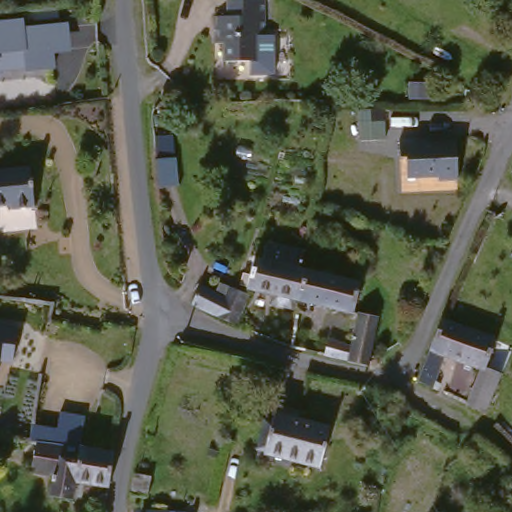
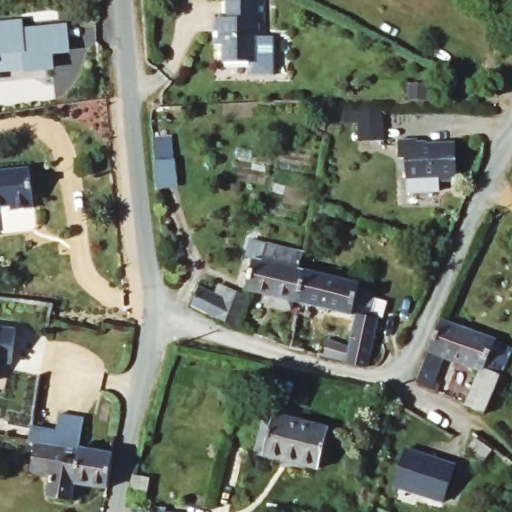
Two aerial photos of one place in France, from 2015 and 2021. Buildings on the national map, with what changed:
unchanged [(231,42),(223,42),(222,24),(223,23),(223,15),(234,15),(234,0),(272,0),(272,34),(263,34),(263,60),(231,60),(231,42)]
unchanged [(21,17),(24,26),(68,21),(69,51),(50,54),(49,68),(0,71),(0,19),(21,17)]
unchanged [(456,182),(399,182),(400,140),(452,142),(456,182)]
unchanged [(173,160),(175,185),(158,186),(156,161),(173,160)]
unchanged [(38,202),(15,204),(15,200),(0,201),(0,166),(34,163),(38,202)]
unchanged [(274,300),(276,290),(251,285),(251,281),(244,280),(247,270),(253,271),(258,253),(266,255),(271,236),(309,245),(305,264),(311,265),(303,297),(298,295),(296,305),(274,300)]
unchanged [(364,278),(357,310),(312,299),(303,297),(311,265),(364,278)]
unchanged [(230,294),(234,282),(253,290),(240,320),(198,300),(201,291),(206,281),(230,294)]
unchanged [(353,357),(353,356),(329,350),(333,334),(356,342),(363,308),(368,310),(369,303),(378,305),(376,311),(382,312),(371,360),(371,362),(353,357)]
unchanged [(501,334),(490,362),(506,369),(489,408),(471,400),(486,365),(450,350),(438,383),(422,376),(446,314),(501,334)]
unchanged [(3,327),(0,359),(0,327),(3,327)]
unchanged [(268,453),(268,451),(261,450),(268,421),(276,422),(279,405),(303,411),(301,420),(333,428),(323,467),(268,453)]
unchanged [(36,442),(28,442),(30,424),(58,429),(60,412),(86,417),(82,452),(78,452),(78,454),(36,446),(36,442)]
unchanged [(75,487),(72,504),(49,500),(53,480),(30,476),(31,469),(36,446),(78,454),(78,452),(113,458),(108,493),(75,487)]
new [(406,447),(456,465),(443,502),(393,485),(406,447)]
unchanged [(133,474),(149,477),(146,498),(134,496),(129,495),(133,474)]
unchanged [(145,512),(137,512),(138,511),(145,512)]

